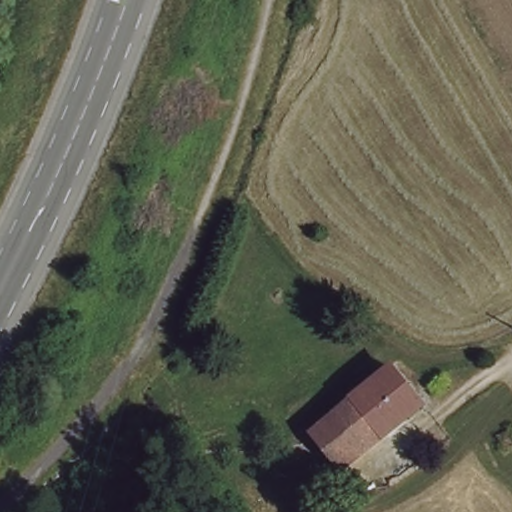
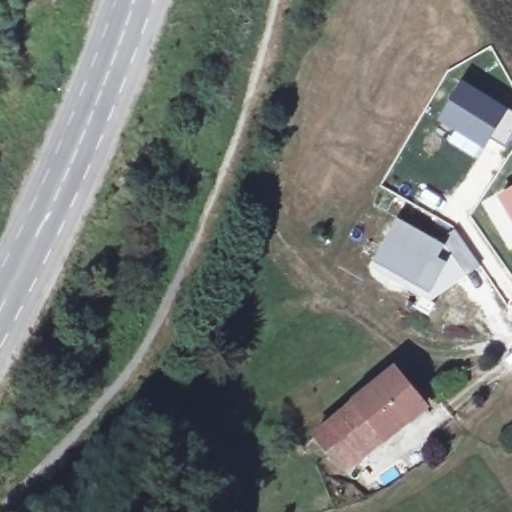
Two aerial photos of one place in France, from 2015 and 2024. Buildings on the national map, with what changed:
new [(512,110),(512,133),(505,146),(491,138),(476,160),(446,141),(453,130),(437,119),(461,78),(512,110)]
new [(512,224),(496,198),(512,187),(512,224)]
new [(427,296),(370,264),(399,217),(445,243),(455,229),(481,265),(466,276),(431,301),(427,296)]
unchanged [(470,387),(441,408),(428,390),(455,369),(470,387)]
unchanged [(330,423),(389,375),(420,413),(360,459),(330,423)]
unchanged [(341,474),(312,439),(330,423),(360,459),(341,474)]
unchanged [(433,460),(422,469),(413,459),(425,449),(433,460)]

